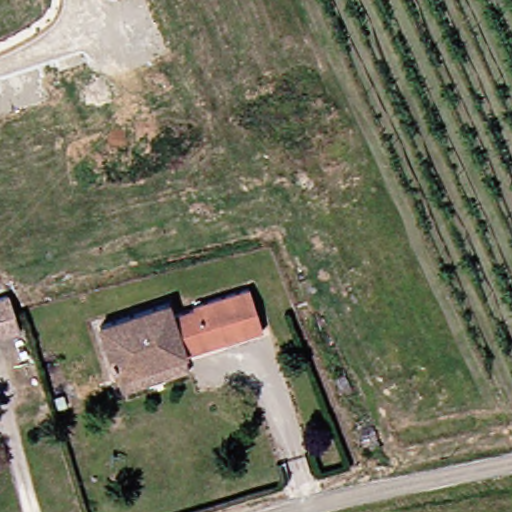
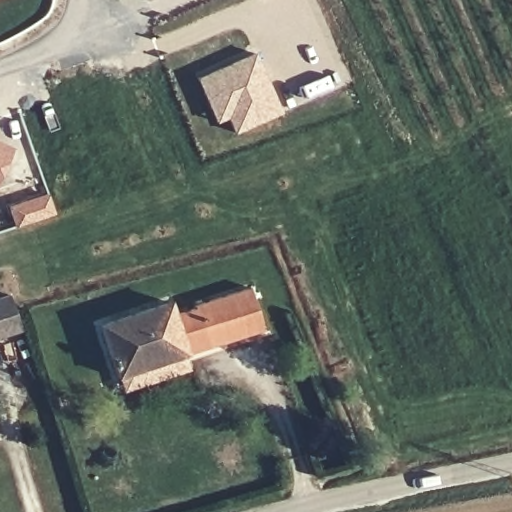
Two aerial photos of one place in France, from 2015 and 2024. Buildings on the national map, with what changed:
new [(255,52),(281,111),(235,131),(228,115),(217,121),(198,77),(209,73),(255,52)]
new [(0,142),(13,147),(0,179),(0,142)]
new [(54,214),(14,227),(8,206),(48,194),(54,214)]
unchanged [(124,376),(111,330),(176,308),(178,315),(256,291),(269,332),(189,356),(124,376)]
unchanged [(24,330),(0,338),(0,298),(12,295),(24,330)]
unchanged [(189,356),(195,374),(129,394),(124,376),(189,356)]

